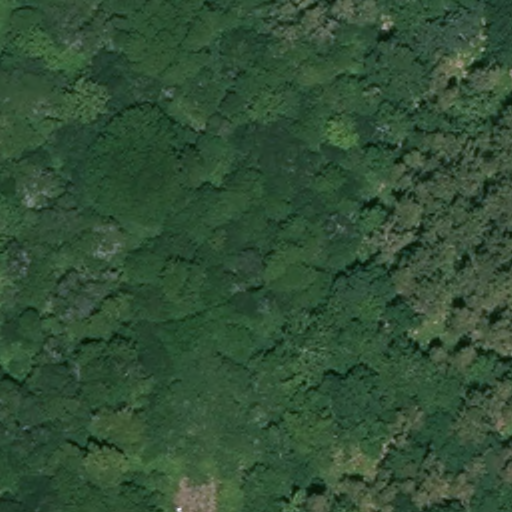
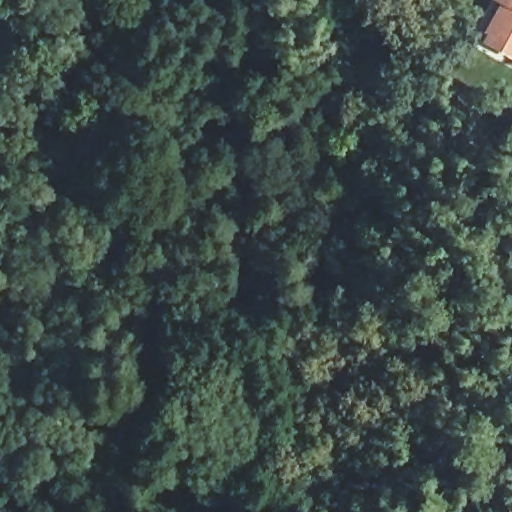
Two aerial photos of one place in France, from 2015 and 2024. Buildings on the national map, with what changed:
new [(480,39),(499,2),(495,0),(512,0),(512,58),(480,39)]

